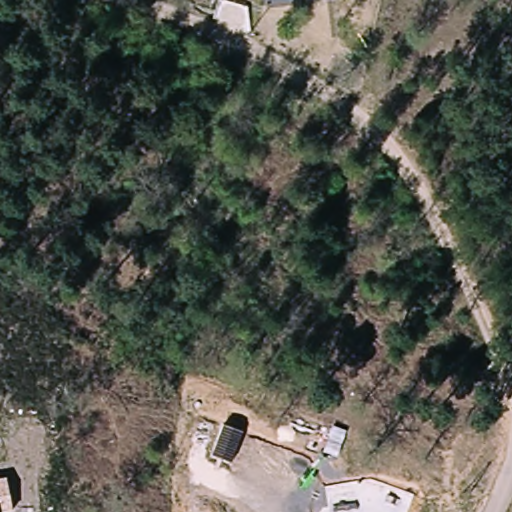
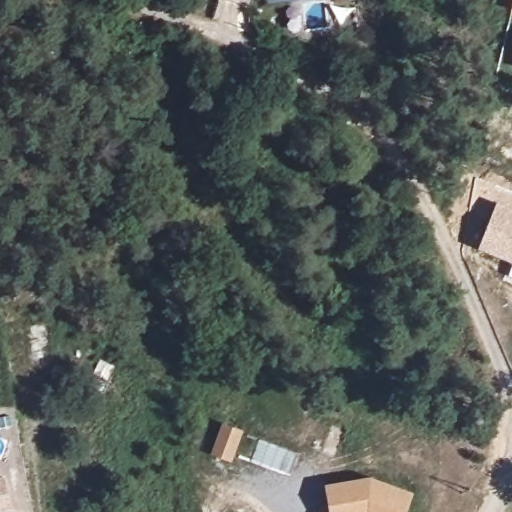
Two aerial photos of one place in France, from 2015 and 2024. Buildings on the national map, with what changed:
new [(262,0),(310,0),(262,5),(262,0)]
new [(512,214),(512,266),(477,253),(497,208),(512,214)]
unchanged [(242,432),(230,462),(210,454),(223,424),(242,432)]
unchanged [(12,512),(10,512),(0,512),(0,478),(6,477),(12,512)]
new [(405,512),(323,512),(330,506),(327,486),(373,479),(412,495),(405,512)]

